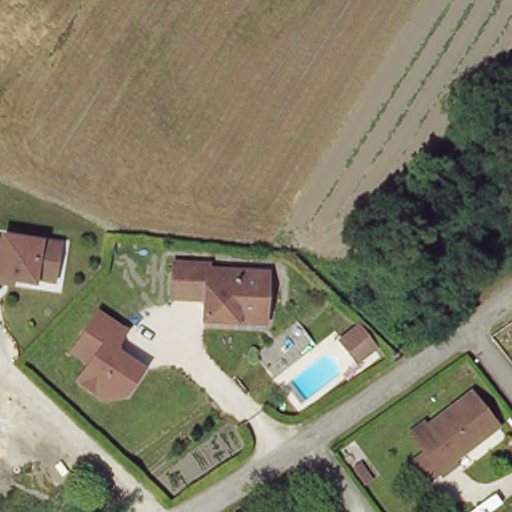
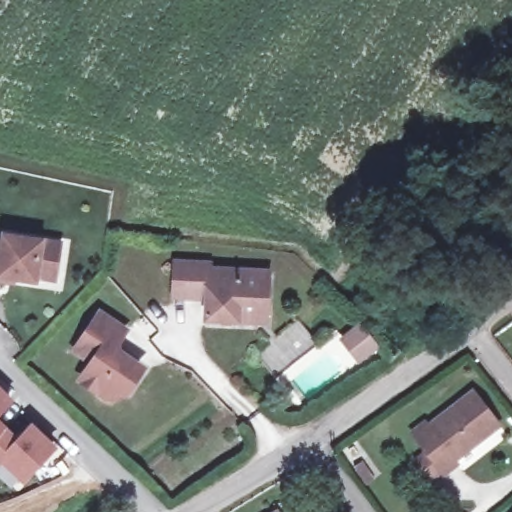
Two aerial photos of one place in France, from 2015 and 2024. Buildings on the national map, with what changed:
unchanged [(34,279),(0,272),(0,237),(4,237),(5,231),(60,242),(55,270),(54,279),(35,275),(34,279)]
unchanged [(242,319),(208,316),(210,297),(177,294),(178,258),(214,261),(214,265),(272,269),(268,309),(267,320),(242,319)]
unchanged [(72,350),(97,313),(124,333),(115,346),(117,353),(137,367),(118,393),(109,387),(99,388),(95,393),(77,380),(89,363),(72,350)]
unchanged [(339,339),(354,327),(369,347),(354,359),(339,339)]
unchanged [(417,455),(428,446),(415,429),(430,418),(432,422),(477,388),(503,422),(457,456),(461,460),(447,470),(445,468),(434,477),(417,455)]
new [(7,396),(0,404),(0,390),(7,396)]
new [(1,426),(13,438),(27,423),(50,444),(19,476),(0,458),(0,428),(1,426)]
new [(1,426),(0,428),(0,426),(1,426)]

